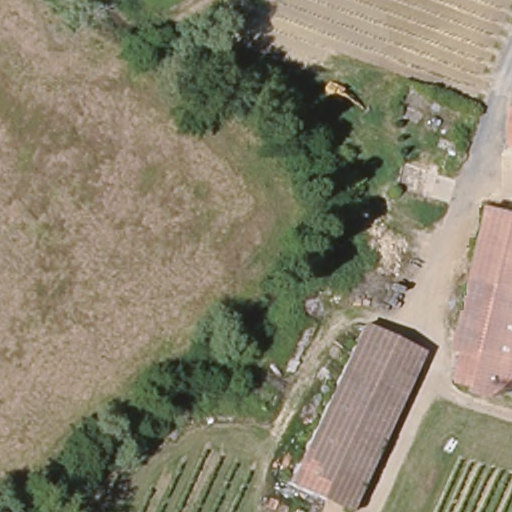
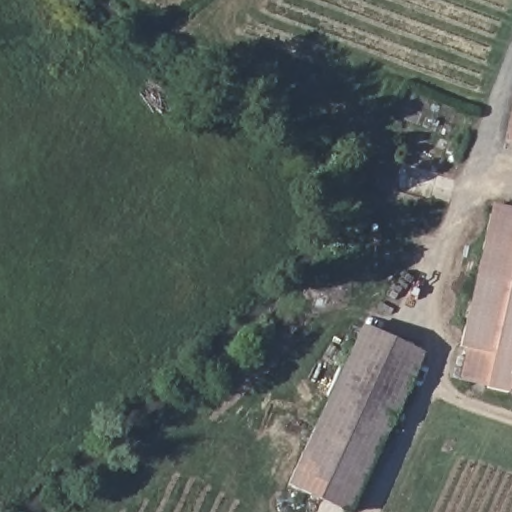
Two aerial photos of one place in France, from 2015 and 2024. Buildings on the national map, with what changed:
unchanged [(512,127),(512,140),(509,139),(512,127)]
unchanged [(480,381),(462,377),(464,368),(469,344),(463,343),(494,204),(512,209),(512,395),(511,395),(491,391),(480,381)]
unchanged [(362,325),(419,352),(344,509),(287,482),(362,325)]

